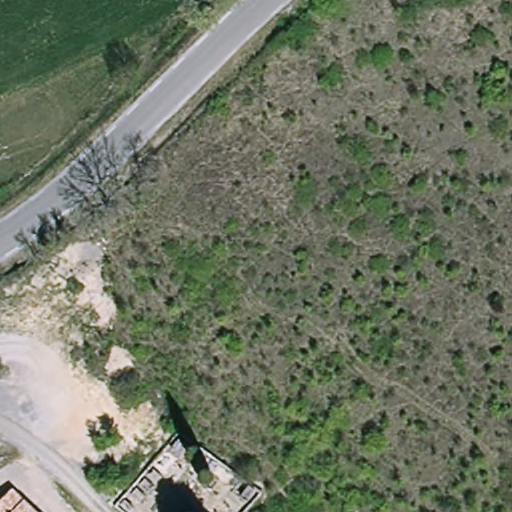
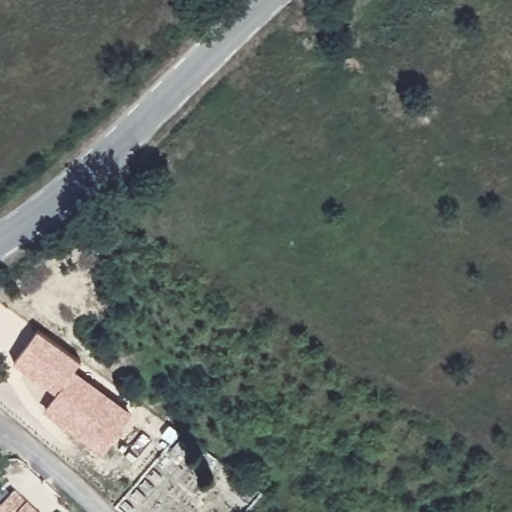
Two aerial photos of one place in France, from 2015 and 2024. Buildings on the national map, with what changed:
new [(80,360),(74,370),(133,412),(101,454),(43,411),(56,392),(14,363),(38,329),(80,360)]
unchanged [(24,500),(35,512),(0,512),(0,504),(13,490),(24,500)]

